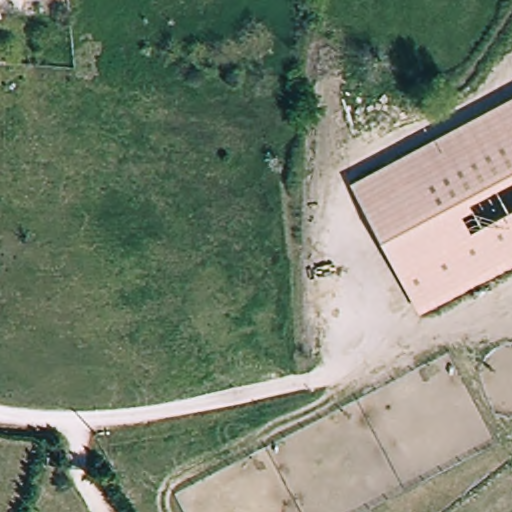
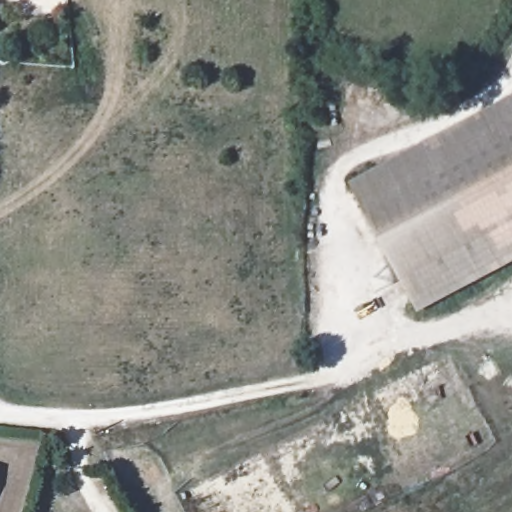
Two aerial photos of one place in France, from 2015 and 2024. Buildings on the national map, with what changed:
unchanged [(354,187),(512,99),(512,268),(426,316),(354,187)]

